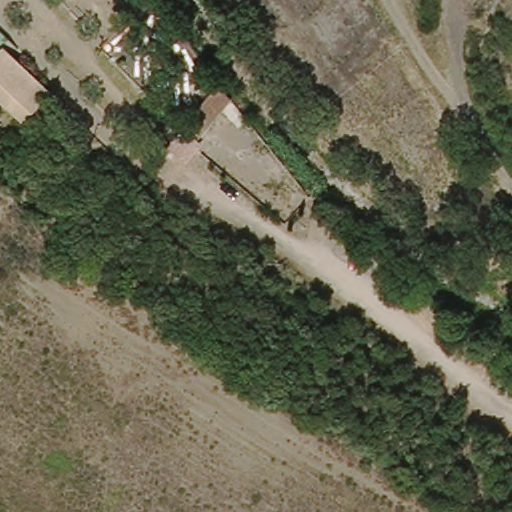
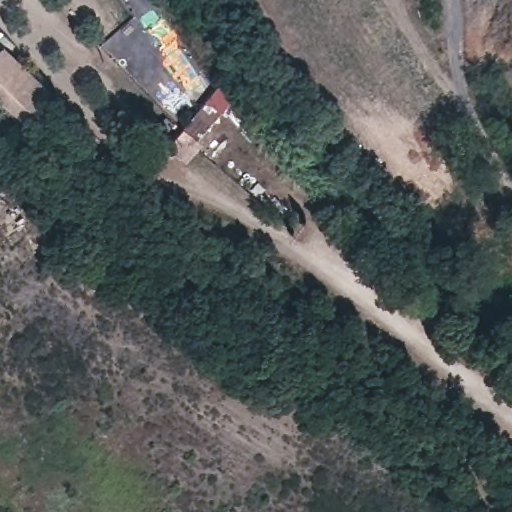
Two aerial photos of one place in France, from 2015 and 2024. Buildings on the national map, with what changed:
unchanged [(0,97),(0,60),(9,49),(58,96),(31,127),(0,97)]
unchanged [(170,151),(218,87),(232,99),(184,164),(170,151)]

